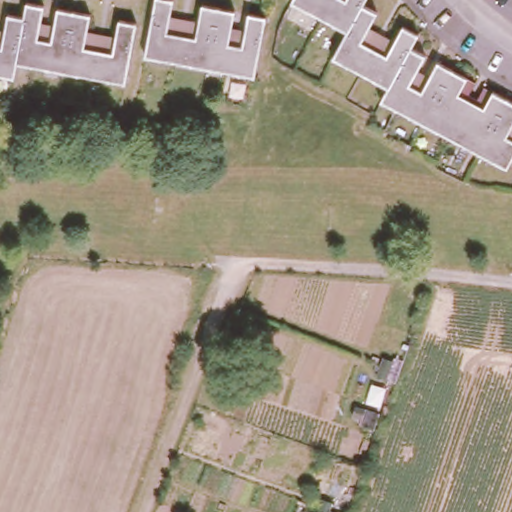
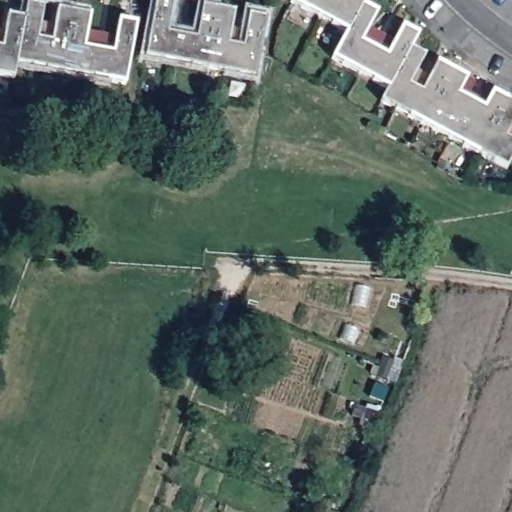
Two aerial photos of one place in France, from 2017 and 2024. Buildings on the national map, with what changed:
unchanged [(165,29),(195,34),(202,1),(233,7),(227,40),(242,43),(249,10),(264,12),(252,77),(143,58),(153,0),(170,0),(165,29)]
unchanged [(364,7),(378,14),(364,42),(391,56),(406,28),(420,36),(414,48),(427,55),(414,82),(426,89),(441,62),(470,78),(462,93),(490,107),(497,92),(512,99),(512,166),(512,167),(385,100),(391,88),(336,60),(350,32),(295,3),(296,0),(367,0),(364,7)]
unchanged [(7,17),(22,20),(25,5),(40,8),(34,41),(50,44),(55,10),(87,16),(82,50),(112,55),(118,22),(135,25),(124,85),(15,65),(12,79),(0,77),(0,49),(0,50),(7,17)]

